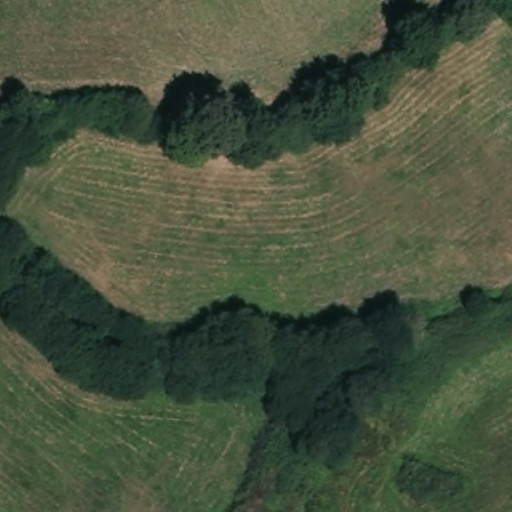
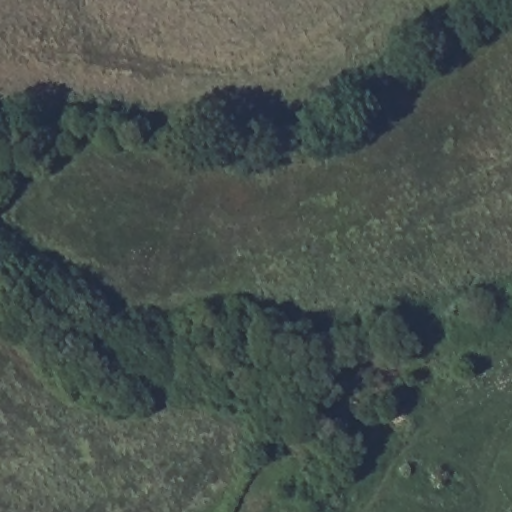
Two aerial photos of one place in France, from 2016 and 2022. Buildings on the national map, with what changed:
[]

